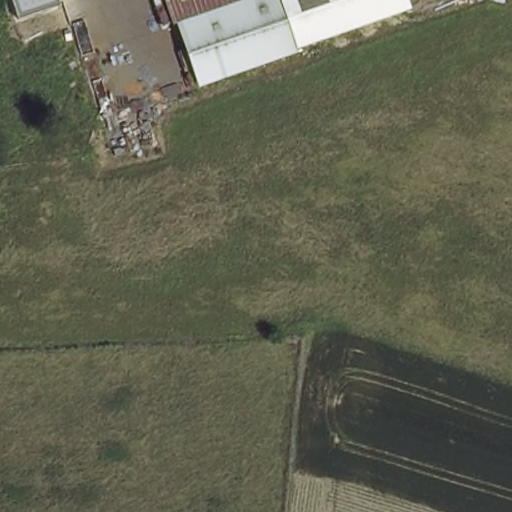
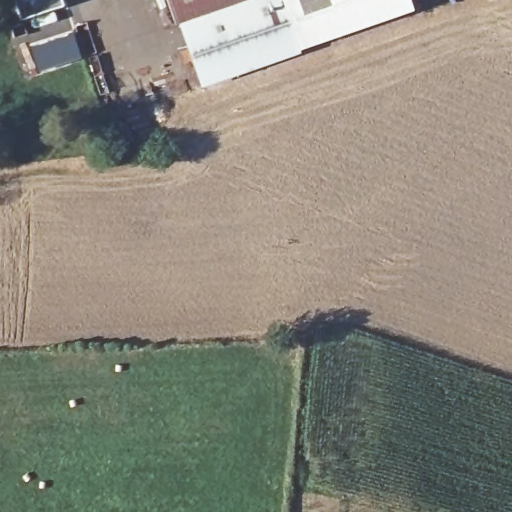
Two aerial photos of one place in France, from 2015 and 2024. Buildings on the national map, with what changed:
unchanged [(21,16),(17,0),(63,0),(64,2),(21,16)]
unchanged [(167,0),(246,0),(175,25),(167,0)]
unchanged [(300,49),(301,52),(201,85),(175,25),(246,0),(408,0),(411,9),(300,49)]
new [(75,31),(83,57),(37,74),(27,46),(75,31)]

